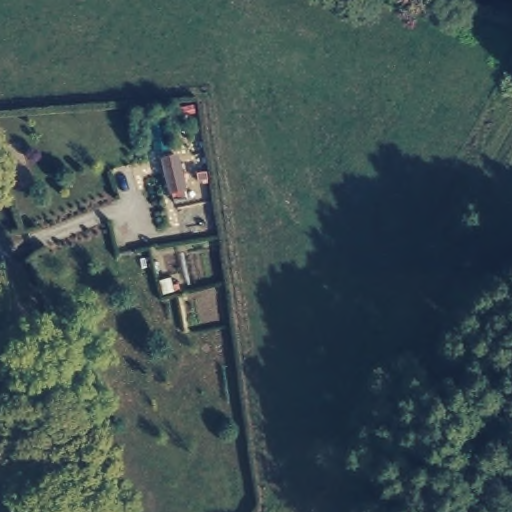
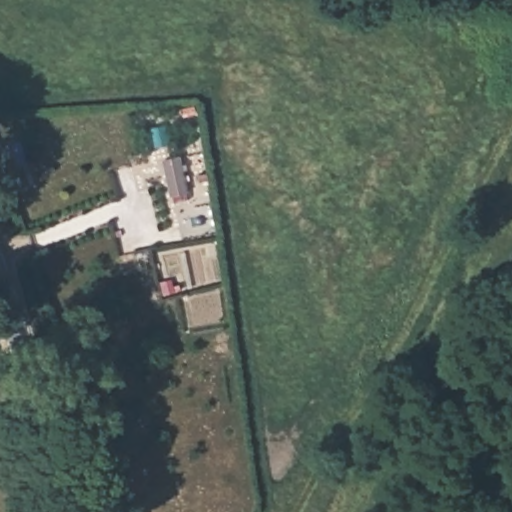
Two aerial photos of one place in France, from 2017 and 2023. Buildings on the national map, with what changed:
unchanged [(127,119),(170,113),(176,149),(133,161),(127,119)]

